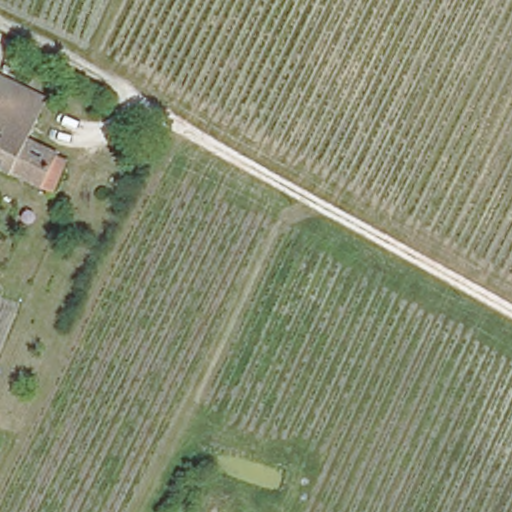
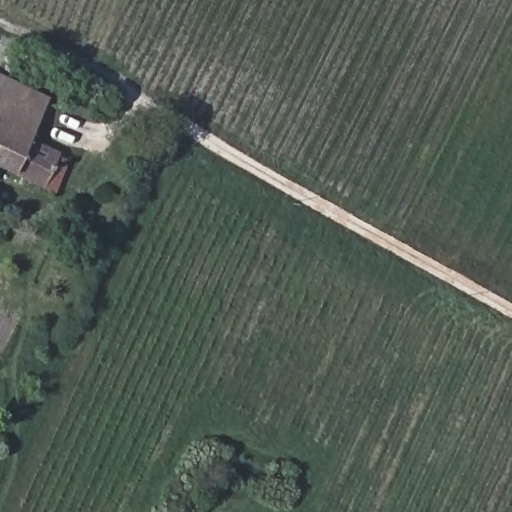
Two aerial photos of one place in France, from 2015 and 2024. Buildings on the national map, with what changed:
unchanged [(7,102),(0,98),(0,73),(50,97),(40,119),(7,102)]
unchanged [(0,118),(0,98),(7,102),(0,118)]
unchanged [(54,193),(0,166),(0,118),(7,102),(40,119),(30,140),(68,160),(54,193)]

